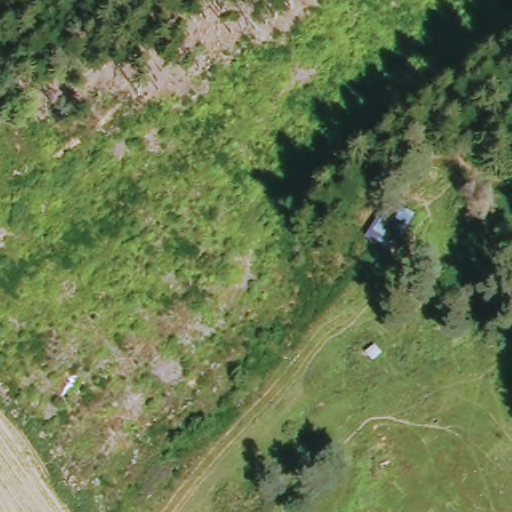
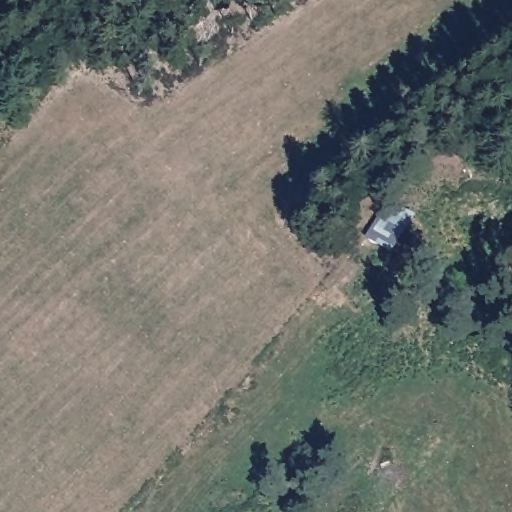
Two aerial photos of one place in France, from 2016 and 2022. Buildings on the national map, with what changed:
unchanged [(383,202),(404,218),(380,253),(358,237),(383,202)]

